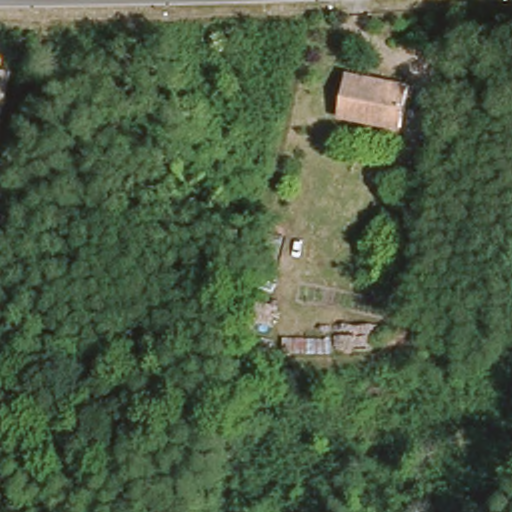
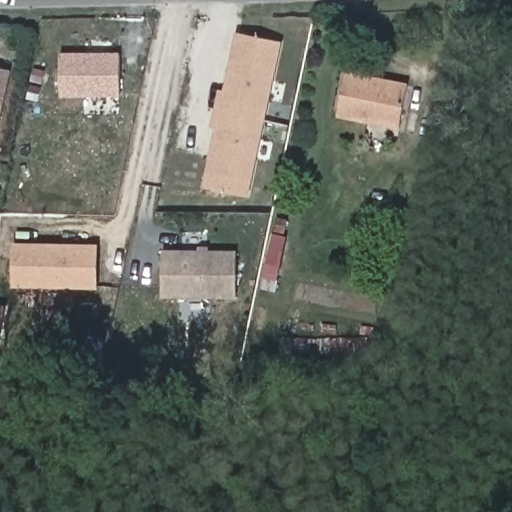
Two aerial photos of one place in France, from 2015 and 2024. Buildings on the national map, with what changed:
new [(283,42),(250,199),(203,189),(235,31),(283,42)]
new [(118,55),(119,96),(61,95),(59,54),(118,55)]
unchanged [(0,110),(0,67),(9,69),(0,110)]
unchanged [(345,70),(405,83),(396,124),(336,110),(345,70)]
new [(95,244),(96,290),(13,287),(10,242),(95,244)]
new [(235,251),(234,298),(161,296),(163,251),(235,251)]

